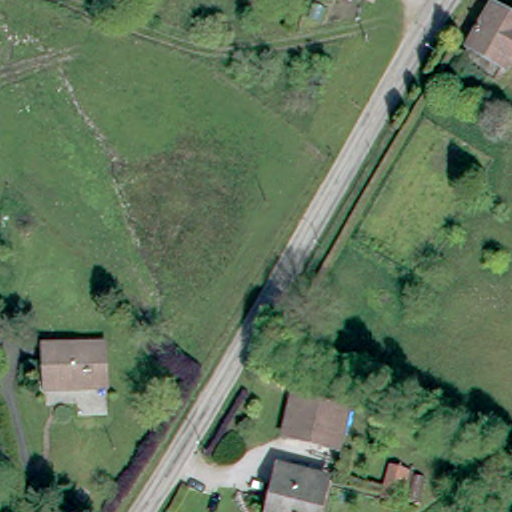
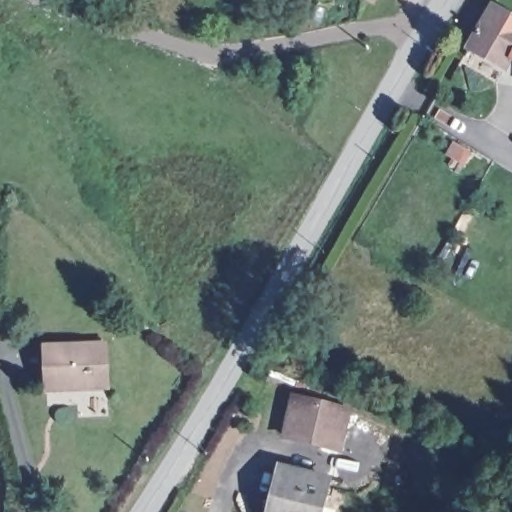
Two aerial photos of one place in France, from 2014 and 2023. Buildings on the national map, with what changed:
unchanged [(512,11),(512,42),(510,41),(499,62),(461,42),(485,0),(492,0),(512,11)]
unchanged [(104,336),(107,382),(48,385),(45,339),(104,336)]
unchanged [(339,405),(333,441),(281,434),(286,395),(339,405)]
unchanged [(320,512),(271,512),(279,470),(326,479),(320,512)]

